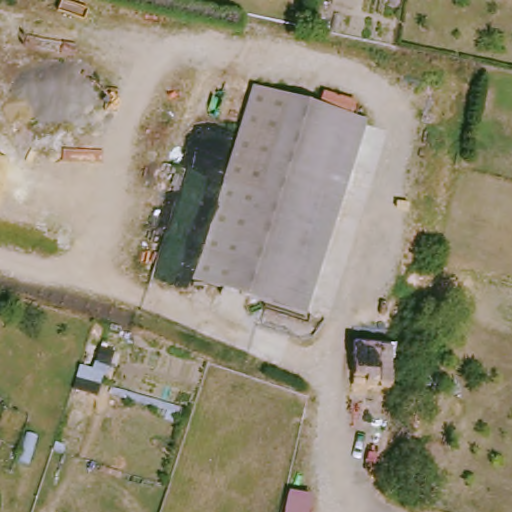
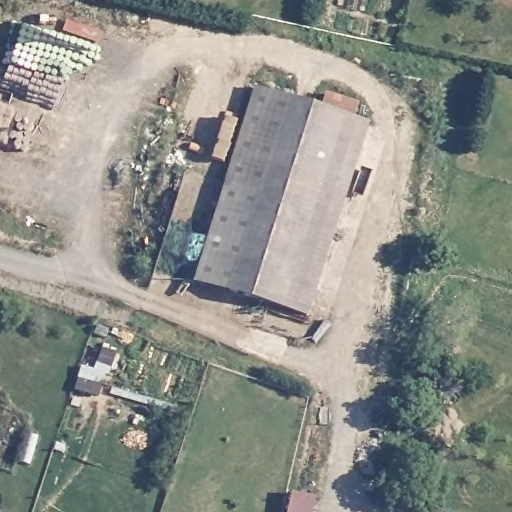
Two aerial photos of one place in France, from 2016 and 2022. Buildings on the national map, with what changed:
unchanged [(371,121),(309,313),(193,278),(251,90),(371,121)]
unchanged [(291,491),(313,498),(311,512),(286,512),(291,491)]

